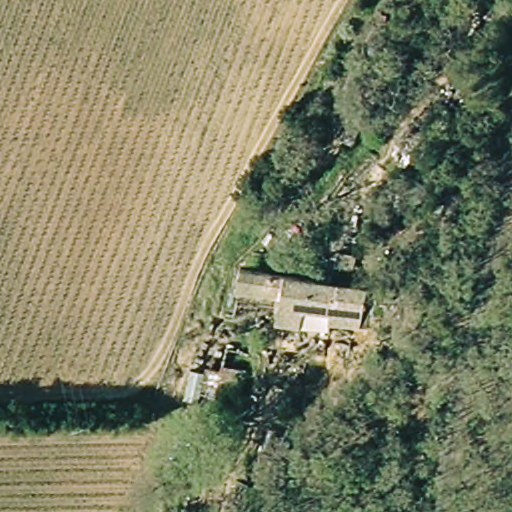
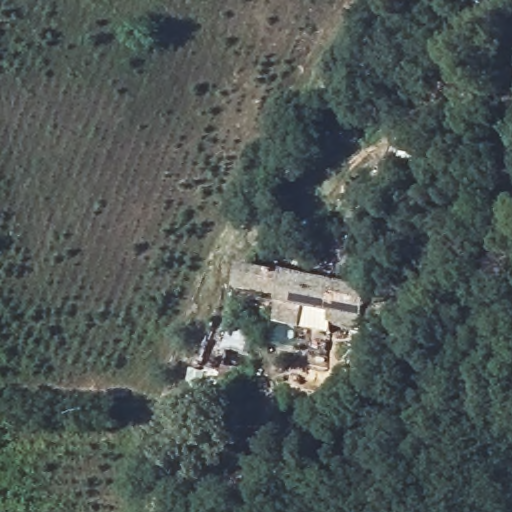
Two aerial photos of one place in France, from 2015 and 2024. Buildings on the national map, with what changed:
unchanged [(303,325),(276,320),(280,298),(238,292),(243,268),(370,289),(364,325),(333,321),(332,330),(303,325)]

